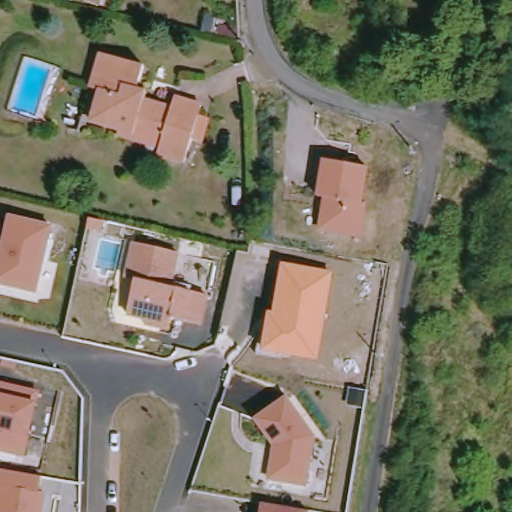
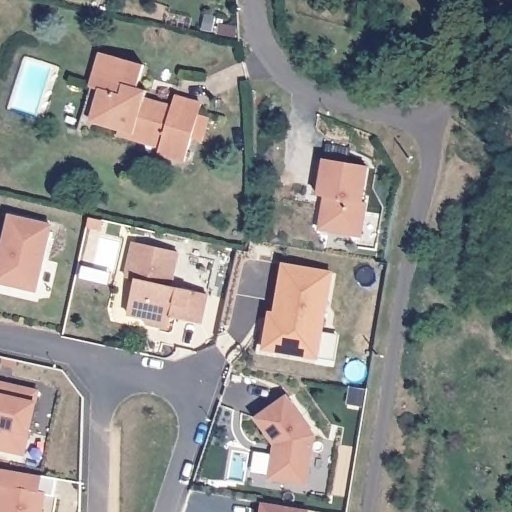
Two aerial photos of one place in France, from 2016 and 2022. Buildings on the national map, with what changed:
unchanged [(208,146),(199,145),(193,163),(164,155),(166,144),(97,125),(105,93),(95,89),(104,56),(150,69),(143,91),(154,94),(151,105),(177,112),(180,101),(208,108),(206,118),(215,120),(208,146)]
unchanged [(363,239),(319,232),(323,198),(318,197),(325,161),(372,169),(365,203),(363,239)]
unchanged [(51,231),(36,296),(0,288),(7,255),(2,254),(10,221),(51,231)]
unchanged [(178,256),(170,290),(206,299),(199,328),(170,321),(167,332),(145,327),(142,321),(127,317),(135,283),(126,281),(135,246),(178,256)]
unchanged [(332,273),(317,360),(261,350),(267,311),(273,312),(281,264),(332,273)]
unchanged [(27,458),(0,452),(0,382),(42,392),(27,458)]
unchanged [(284,402),(312,441),(302,489),(267,483),(272,449),(254,423),(284,402)]
unchanged [(44,494),(47,496),(45,512),(0,512),(0,490),(0,471),(45,478),(44,494)]
unchanged [(277,508),(305,512),(259,512),(260,505),(277,508)]

